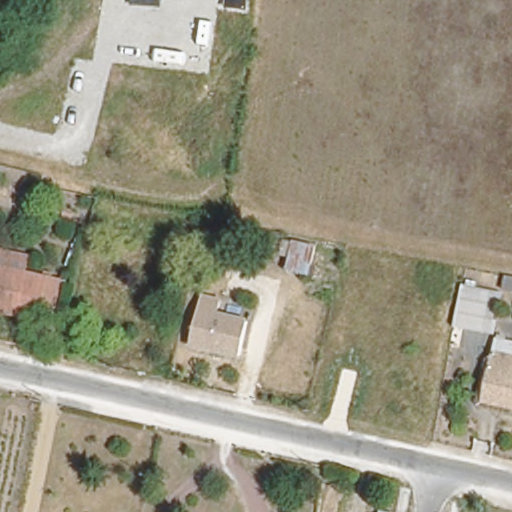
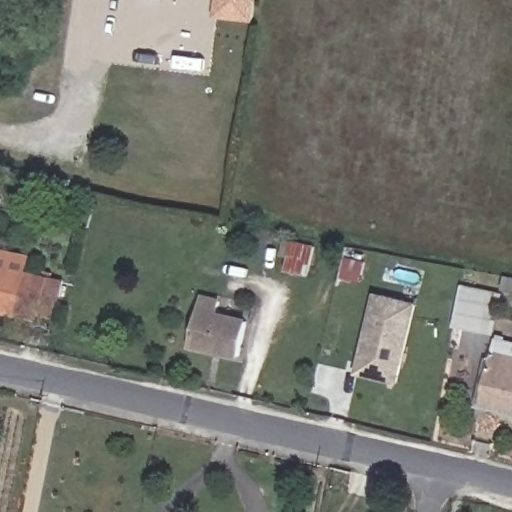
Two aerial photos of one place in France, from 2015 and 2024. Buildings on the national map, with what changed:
new [(216,0),(255,0),(252,21),(214,16),(216,0)]
unchanged [(316,245),(308,280),(287,276),(293,241),(302,242),(316,245)]
unchanged [(27,271),(67,281),(58,313),(37,308),(34,322),(0,315),(0,249),(30,257),(27,271)]
unchanged [(512,278),(512,295),(503,293),(507,277),(512,278)]
unchanged [(497,300),(489,337),(452,330),(459,292),(497,300)]
new [(355,373),(374,293),(418,303),(398,385),(355,373)]
unchanged [(191,347),(193,337),(202,294),(219,299),(217,310),(243,317),(236,347),(234,358),(191,347)]
unchanged [(482,409),(492,357),(495,344),(512,348),(512,415),(482,409)]

